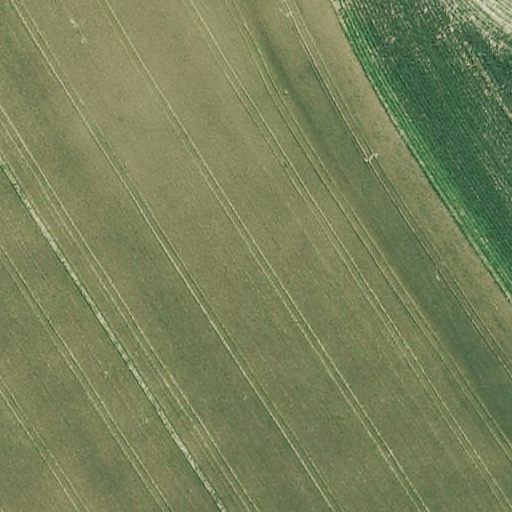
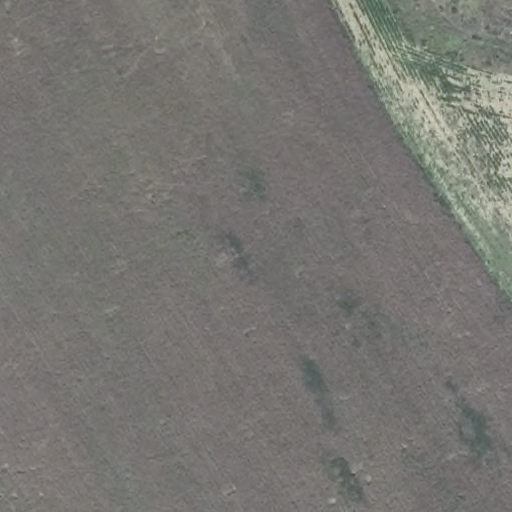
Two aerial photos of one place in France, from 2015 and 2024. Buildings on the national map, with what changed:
[]

